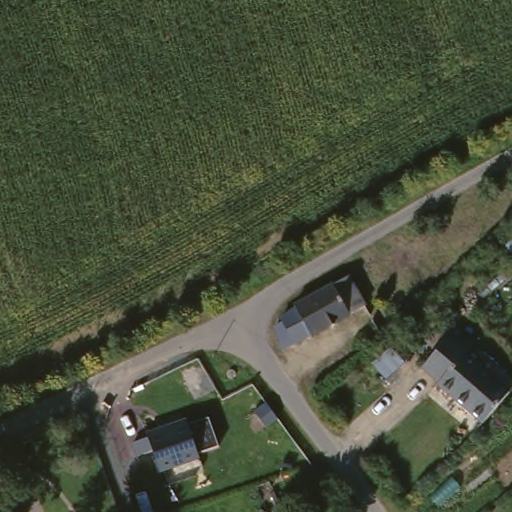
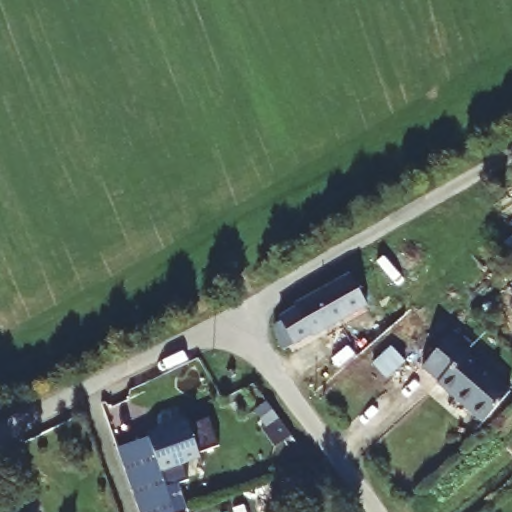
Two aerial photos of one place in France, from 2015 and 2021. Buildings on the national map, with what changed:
unchanged [(361,309),(307,343),(304,339),(291,347),(273,327),(290,318),(287,311),(343,278),(361,309)]
unchanged [(467,356),(510,392),(476,428),(432,387),(435,384),(416,367),(447,333),(471,352),(467,356)]
unchanged [(403,357),(385,379),(371,367),(390,346),(403,357)]
unchanged [(149,433),(185,423),(197,461),(163,471),(149,433)]

